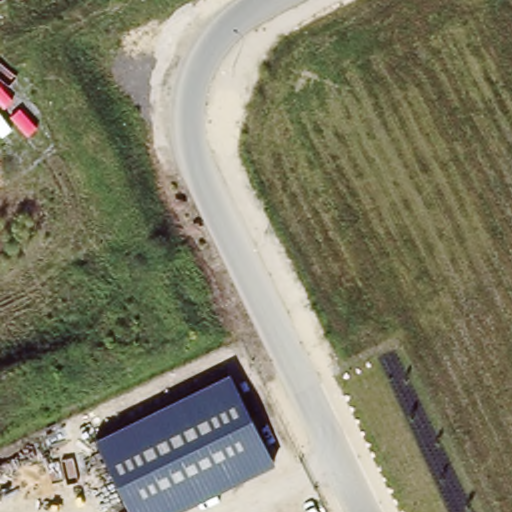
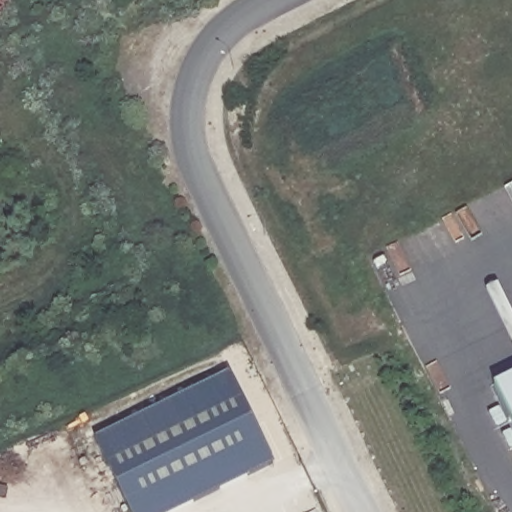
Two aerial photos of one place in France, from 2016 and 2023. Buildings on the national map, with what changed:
unchanged [(273,465),(180,512),(130,512),(95,440),(230,373),(273,465)]
new [(494,385),(512,376),(512,421),(494,385)]

